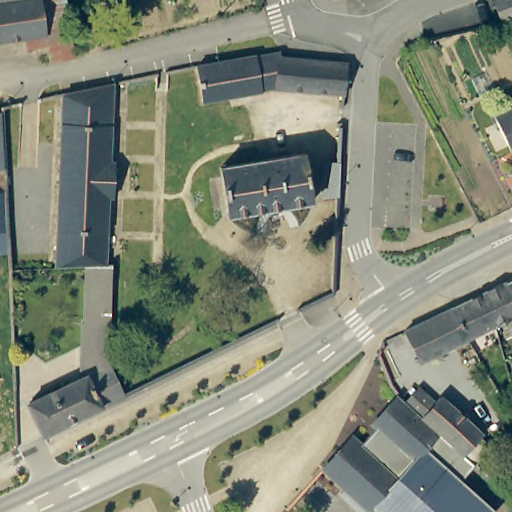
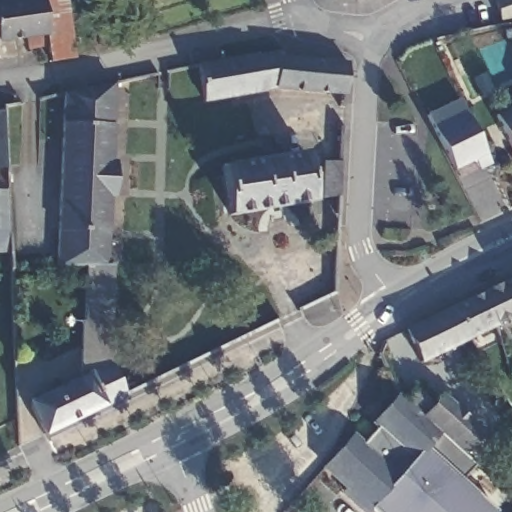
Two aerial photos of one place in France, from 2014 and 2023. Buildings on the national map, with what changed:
unchanged [(0,7),(0,0),(39,0),(0,7)]
unchanged [(39,0),(69,0),(75,35),(80,61),(61,64),(59,49),(35,53),(33,39),(0,46),(0,7),(39,0)]
unchanged [(496,18),(443,36),(438,17),(489,0),(512,0),(512,18),(496,23),(496,18)]
unchanged [(283,57),(283,60),(349,64),(347,94),(277,89),(205,105),(198,68),(203,68),(273,56),(283,54),(283,57)]
unchanged [(512,85),(512,96),(507,87),(512,85)]
unchanged [(63,268),(72,96),(81,94),(122,86),(118,164),(123,164),(121,199),(116,198),(112,260),(112,265),(99,266),(89,266),(88,266),(63,268)]
new [(489,164),(478,170),(474,160),(454,169),(425,114),(458,98),(489,164)]
unchanged [(1,127),(1,170),(0,171),(0,106),(1,127)]
unchanged [(508,155),(504,157),(486,120),(512,107),(512,161),(511,161),(508,155)]
unchanged [(225,207),(220,164),(305,155),(309,198),(310,205),(299,206),(271,209),(225,214),(225,207)]
unchanged [(335,159),(332,195),(317,194),(320,158),(335,159)]
unchanged [(5,257),(0,258),(0,171),(1,170),(5,257)]
unchanged [(89,266),(99,266),(112,265),(116,264),(112,367),(88,377),(88,266),(89,266)]
unchanged [(512,274),(512,291),(505,277),(512,274)]
unchanged [(512,291),(512,311),(491,320),(476,290),(505,277),(512,291)]
unchanged [(476,290),(491,320),(497,330),(486,336),(481,327),(467,334),(463,327),(450,302),(476,290)]
unchanged [(463,327),(467,334),(420,359),(402,324),(450,302),(463,327)]
unchanged [(129,399),(51,437),(32,400),(88,377),(112,367),(129,399)]
unchanged [(416,384),(432,399),(439,391),(480,427),(478,429),(489,439),(474,456),(460,444),(423,410),(406,395),(416,384)]
unchanged [(462,473),(497,505),(491,512),(381,512),(369,501),(364,507),(347,492),(351,486),(322,461),(351,429),(360,437),(376,420),(372,416),(397,387),(406,395),(423,410),(460,444),(474,456),(475,458),(462,473)]

